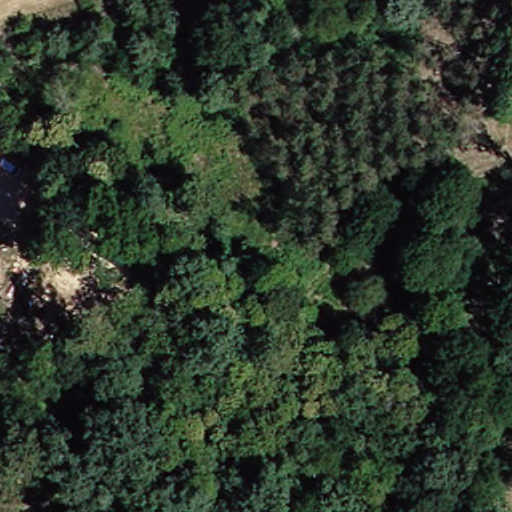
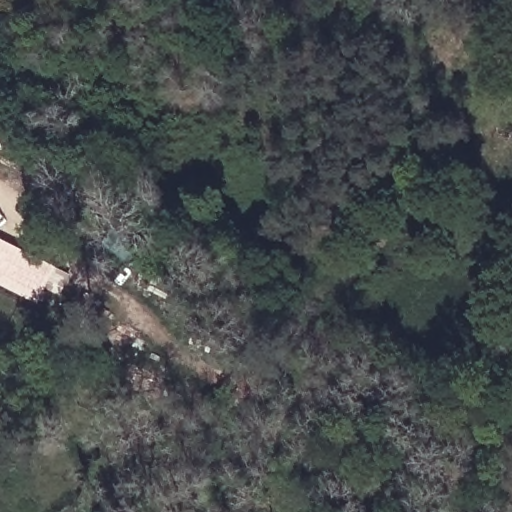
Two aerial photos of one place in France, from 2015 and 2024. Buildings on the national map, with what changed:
new [(75,274),(63,297),(45,288),(38,302),(0,284),(0,237),(75,274)]

